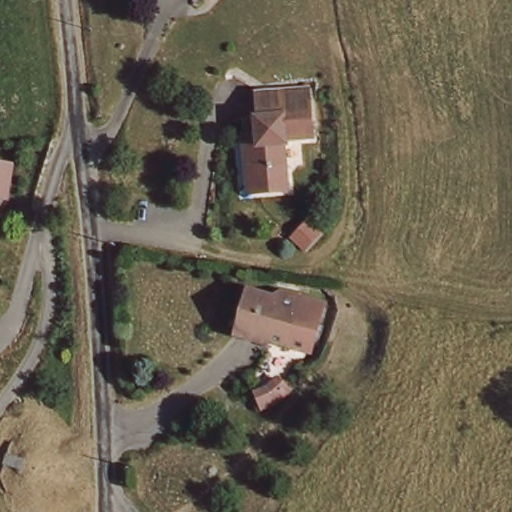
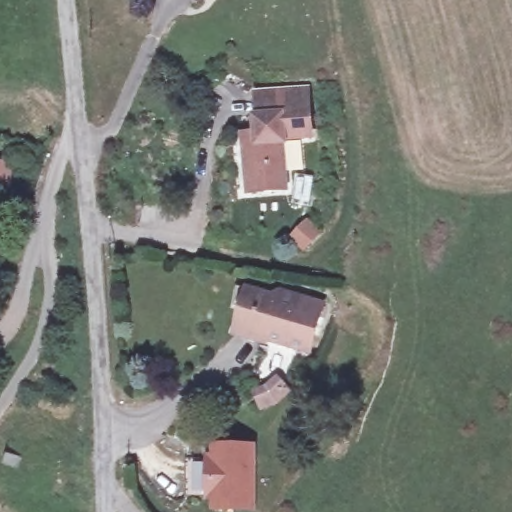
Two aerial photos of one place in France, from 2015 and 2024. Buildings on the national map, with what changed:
unchanged [(265,118),(263,94),(308,90),(312,142),(292,144),(295,190),(256,193),(251,137),(262,136),(260,118),(265,118)]
unchanged [(18,159),(14,198),(0,196),(0,157),(18,159)]
unchanged [(282,346),(231,332),(242,291),(269,298),(271,290),(321,302),(308,344),(306,353),(282,346)]
unchanged [(286,390),(277,403),(259,404),(253,394),(279,378),(286,390)]
new [(211,500),(206,500),(208,454),(213,455),(213,443),(258,443),(257,512),(246,512),(211,510),(211,500)]

